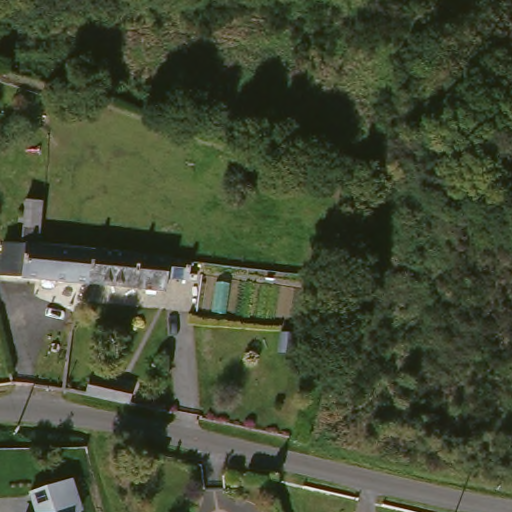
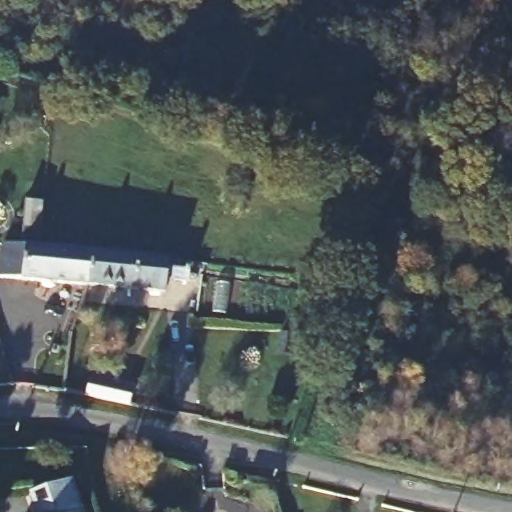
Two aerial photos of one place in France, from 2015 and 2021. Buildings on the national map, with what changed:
unchanged [(6,64),(5,77),(0,77),(0,62),(6,64)]
unchanged [(85,283),(0,278),(3,247),(26,248),(27,232),(29,201),(46,201),(44,233),(44,250),(93,253),(91,284),(85,283)]
unchanged [(168,256),(171,258),(192,260),(190,273),(170,272),(170,288),(91,284),(93,253),(168,256)]
unchanged [(92,374),(136,380),(135,403),(89,395),(92,374)]
unchanged [(82,512),(33,512),(28,496),(72,481),(82,512)]

